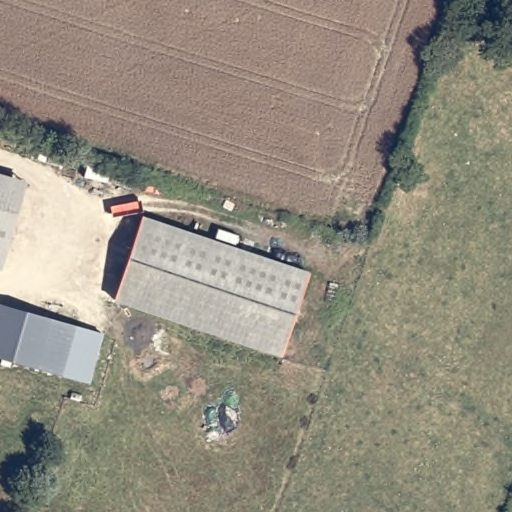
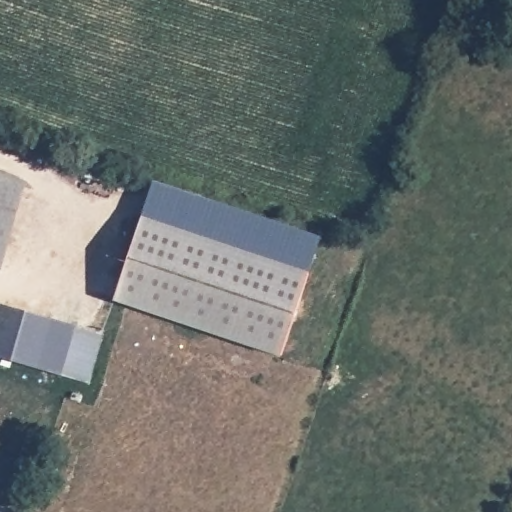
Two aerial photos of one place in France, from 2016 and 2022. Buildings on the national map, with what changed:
unchanged [(17,183),(0,244),(0,178),(17,183)]
new [(154,181),(321,237),(308,274),(268,261),(141,218),(154,181)]
unchanged [(268,261),(308,274),(280,356),(238,342),(113,299),(141,218),(268,261)]
unchanged [(92,333),(102,336),(88,386),(75,382),(0,361),(0,308),(92,333)]

